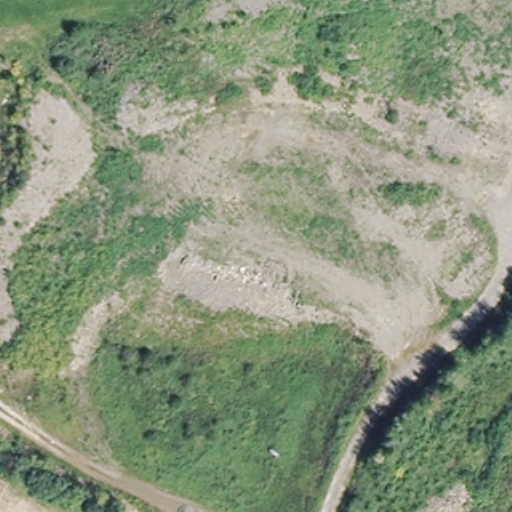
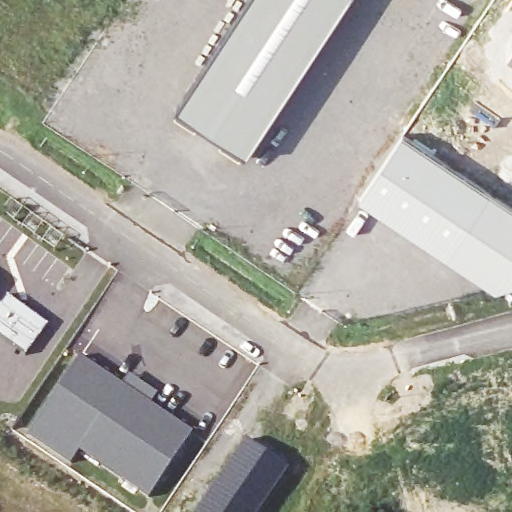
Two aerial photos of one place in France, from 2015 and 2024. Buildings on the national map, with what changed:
new [(245,5),(248,0),(349,0),(246,155),(176,111),(245,5)]
new [(512,57),(508,54),(512,48),(512,57)]
new [(512,207),(512,288),(501,290),(495,290),(476,279),(359,199),(402,135),(512,207)]
new [(7,295),(46,323),(25,354),(0,336),(0,305),(7,295)]
new [(45,400),(78,353),(122,382),(128,373),(157,391),(151,402),(194,431),(149,496),(78,450),(71,461),(26,431),(45,400)]
new [(289,467),(259,512),(192,512),(243,438),(289,467)]

